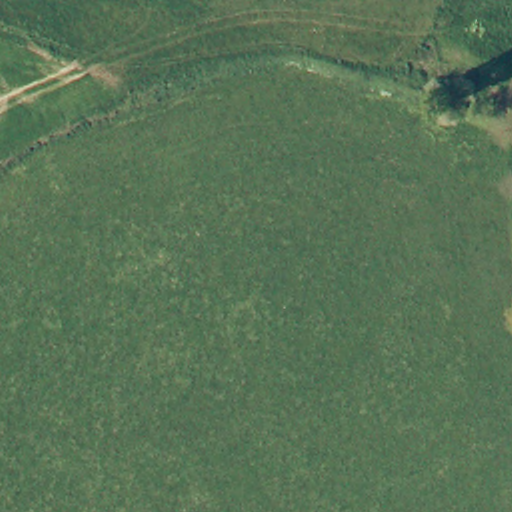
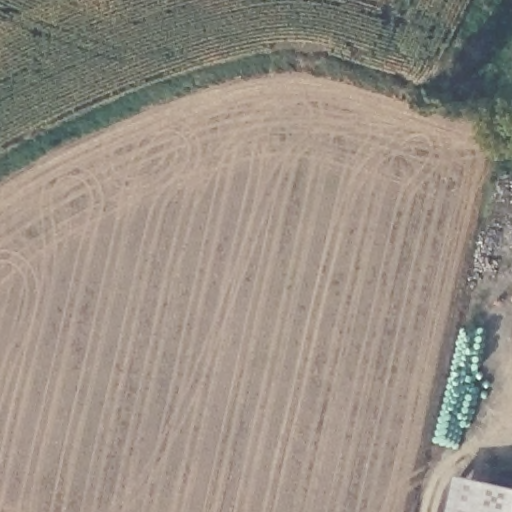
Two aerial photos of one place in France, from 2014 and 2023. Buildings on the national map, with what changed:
new [(512,487),(512,512),(449,512),(457,475),(512,487)]

